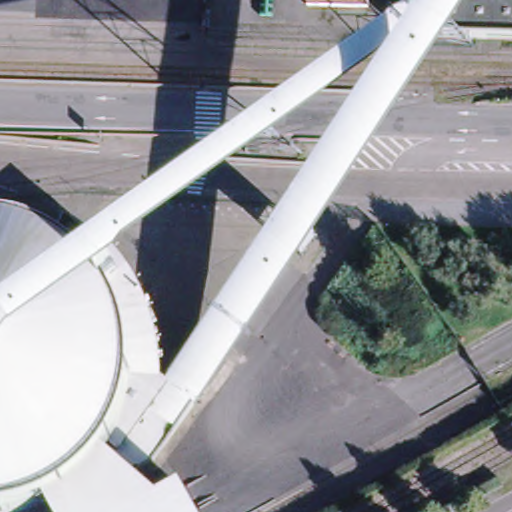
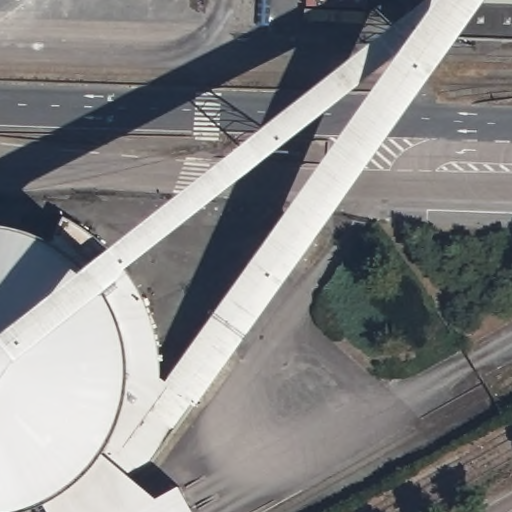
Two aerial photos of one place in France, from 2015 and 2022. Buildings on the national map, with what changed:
unchanged [(408,37),(409,20),(409,0),(512,0),(512,41),(408,37)]
unchanged [(115,256),(120,261),(126,268),(132,277),(140,290),(144,300),(148,310),(153,320),(155,327),(158,339),(159,346),(159,356),(161,368),(161,377),(170,385),(119,453),(109,446),(112,441),(116,432),(118,428),(120,423),(123,414),(126,405),(128,395),(128,385),(129,375),(129,365),(128,355),(126,345),(124,335),(121,326),(117,316),(113,307),(108,299),(103,290),(96,283),(90,276),(115,256)]
unchanged [(48,502),(57,497),(63,494),(65,492),(68,491),(73,486),(81,480),(84,477),(85,477),(88,473),(95,466),(99,460),(101,458),(103,455),(104,454),(158,500),(135,512),(51,512),(46,503),(48,502)]
unchanged [(181,487),(195,512),(135,512),(158,500),(181,487)]

